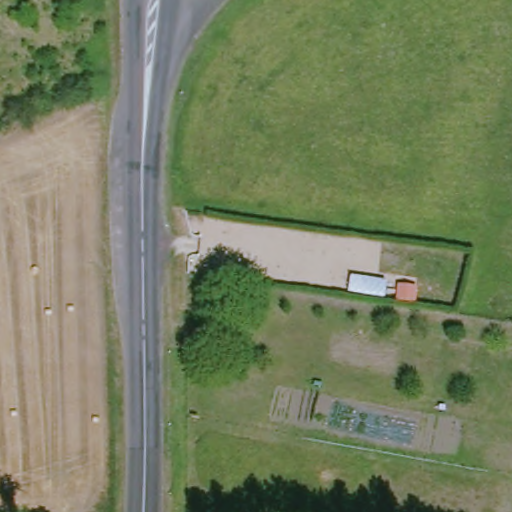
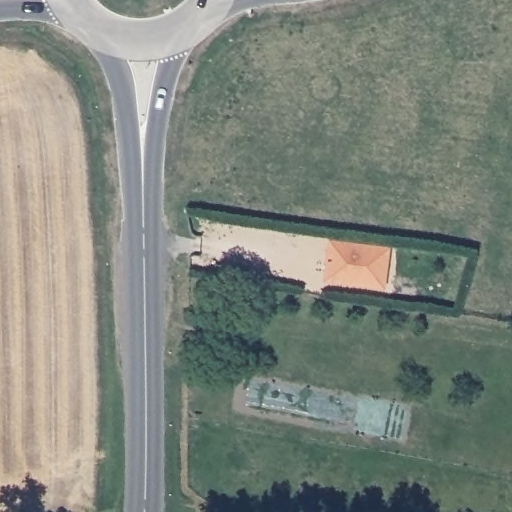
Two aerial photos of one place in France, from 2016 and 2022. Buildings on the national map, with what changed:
new [(388,250),(384,288),(328,282),(332,244),(388,250)]

